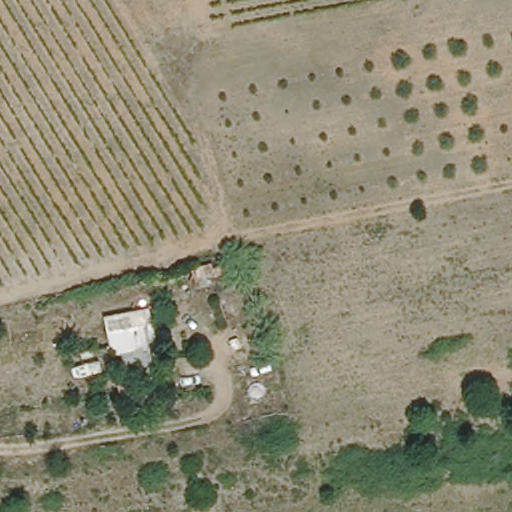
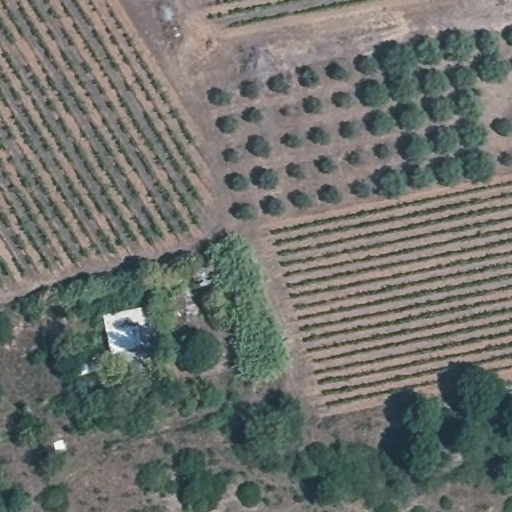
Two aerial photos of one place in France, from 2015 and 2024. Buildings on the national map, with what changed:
unchanged [(106,313),(139,303),(138,299),(155,296),(164,343),(140,349),(141,354),(125,358),(122,351),(115,352),(106,313)]

